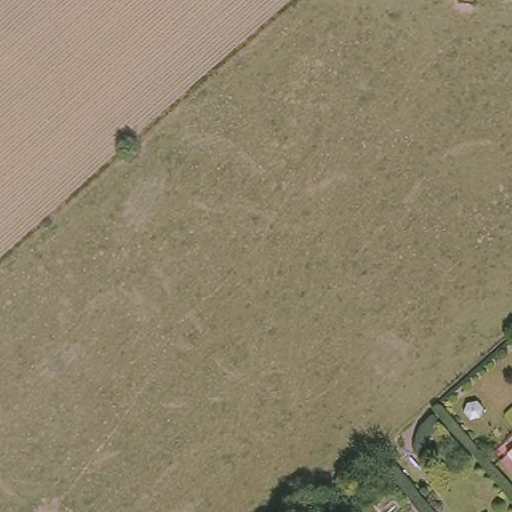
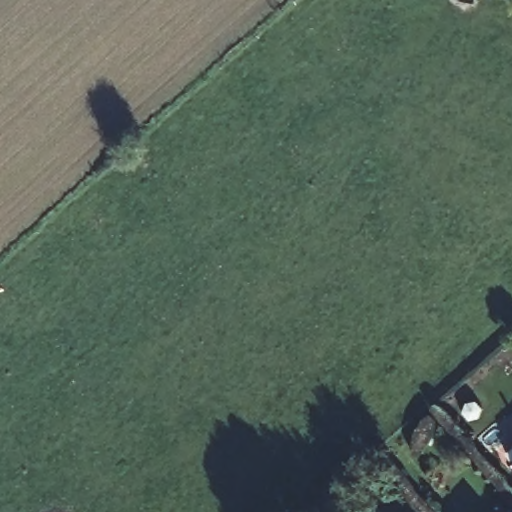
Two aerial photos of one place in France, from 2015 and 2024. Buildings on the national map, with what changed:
unchanged [(504,454),(512,447),(512,463),(504,454)]

